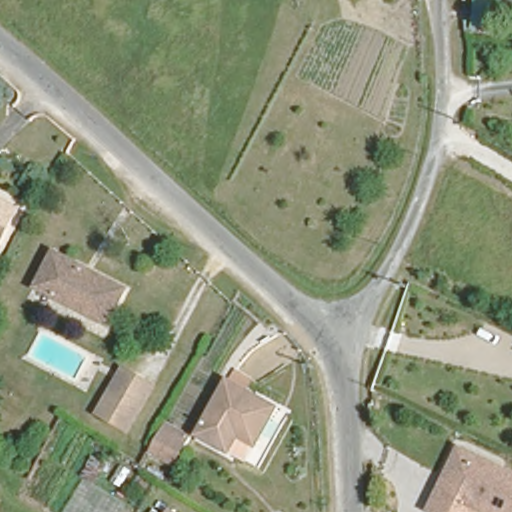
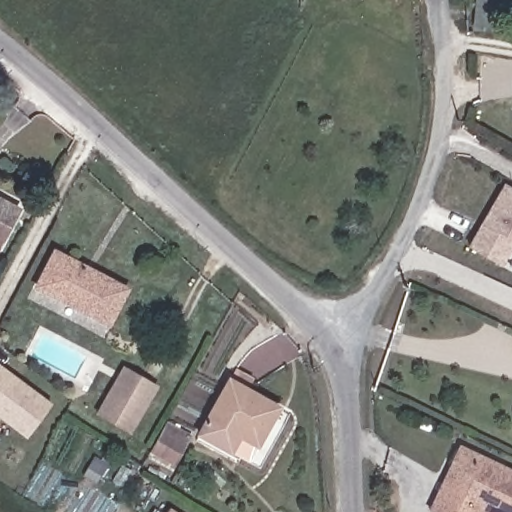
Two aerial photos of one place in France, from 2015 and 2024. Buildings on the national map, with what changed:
new [(470,248),(506,185),(512,188),(512,272),(500,266),(470,248)]
unchanged [(18,205),(0,238),(0,195),(18,205)]
unchanged [(38,288),(55,254),(126,290),(110,324),(38,288)]
new [(50,406),(26,438),(0,418),(0,369),(50,406)]
unchanged [(129,432),(99,414),(113,390),(125,370),(139,378),(155,387),(129,432)]
unchanged [(258,445),(240,435),(230,453),(199,435),(230,382),(235,371),(255,381),(249,392),(278,409),(258,445)]
unchanged [(166,425),(180,432),(165,460),(151,452),(166,425)]
unchanged [(460,445),(512,469),(512,512),(493,512),(485,508),(483,512),(437,512),(430,509),(446,474),(460,445)]
unchanged [(170,509),(174,512),(168,512),(170,509)]

